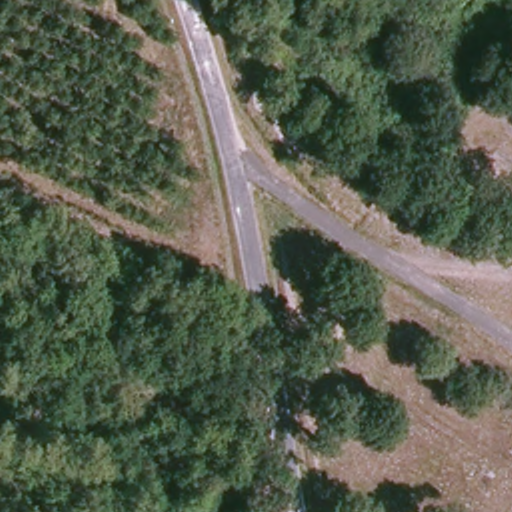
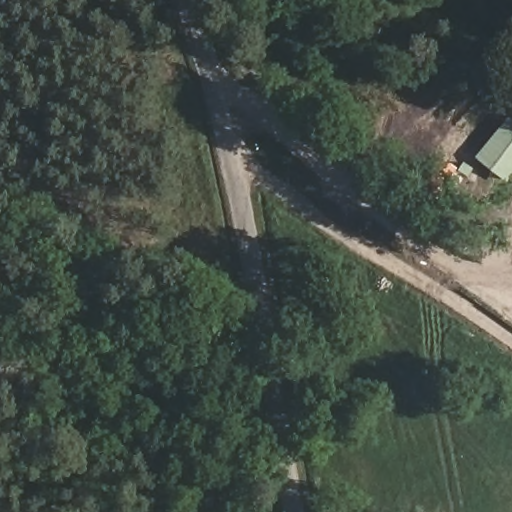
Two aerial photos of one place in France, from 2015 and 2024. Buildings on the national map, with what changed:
new [(512,120),(512,177),(508,183),(476,159),(508,118),(512,120)]

